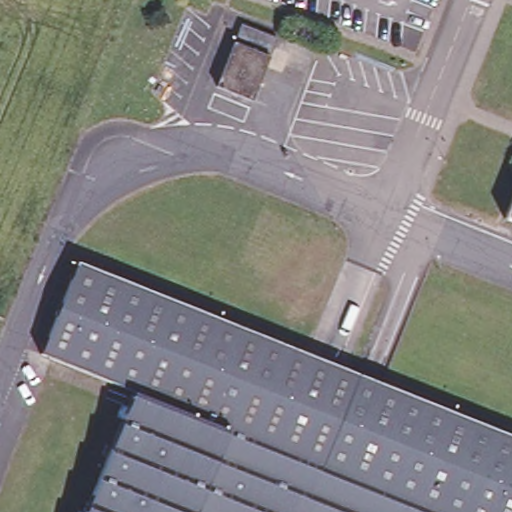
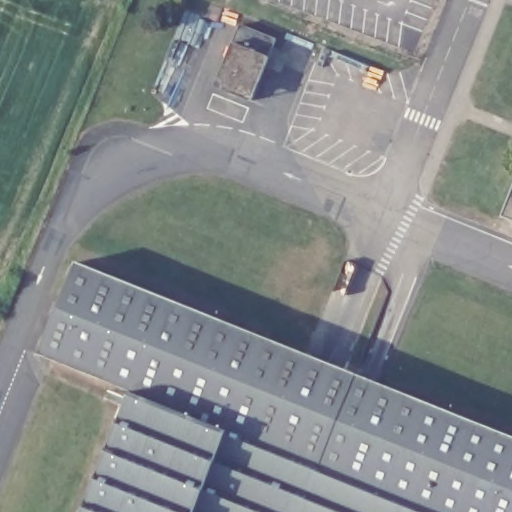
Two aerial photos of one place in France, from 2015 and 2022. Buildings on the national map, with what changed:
unchanged [(256,0),(260,0),(266,3),(258,24),(248,20),(256,0)]
unchanged [(511,0),(512,0),(512,4),(509,3),(511,0)]
unchanged [(277,44),(251,106),(218,93),(243,30),(277,44)]
unchanged [(326,54),(321,69),(284,55),(291,39),(326,54)]
unchanged [(512,203),(512,226),(504,223),(512,203)]
unchanged [(512,512),(423,512),(323,472),(133,396),(39,359),(78,265),(512,441),(512,512)]
unchanged [(133,396),(323,472),(307,512),(86,512),(133,396)]
unchanged [(323,472),(423,512),(307,512),(323,472)]

